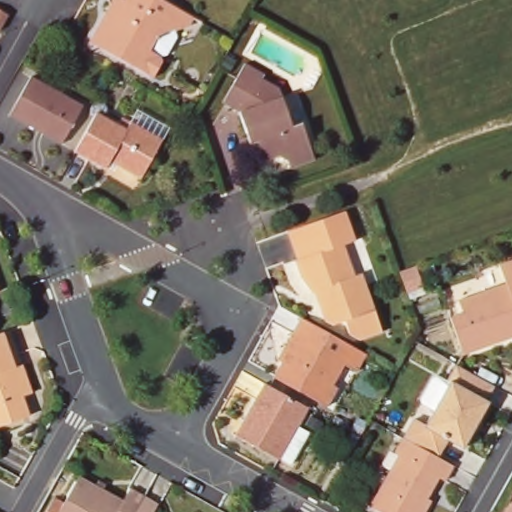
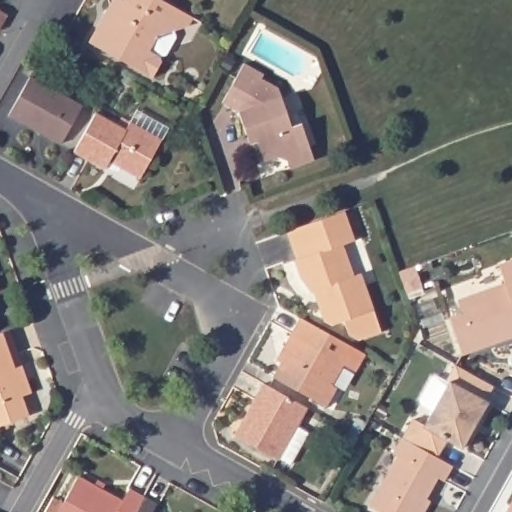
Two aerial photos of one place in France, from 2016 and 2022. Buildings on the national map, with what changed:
unchanged [(146,50),(158,56),(159,62),(149,78),(86,42),(109,0),(160,0),(180,12),(189,17),(183,26),(170,30),(155,34),(146,50)]
unchanged [(11,7),(2,24),(0,22),(0,1),(11,7)]
unchanged [(246,63),(265,74),(262,78),(280,87),(294,127),(303,123),(316,159),(291,167),(289,160),(278,156),(266,160),(256,133),(249,136),(240,112),(225,102),(246,63)]
unchanged [(27,73),(79,102),(57,139),(6,110),(27,73)]
unchanged [(98,108),(116,117),(120,110),(164,135),(142,172),(112,156),(107,164),(76,147),(98,108)]
unchanged [(303,271),(297,254),(302,252),(291,224),(337,207),(347,204),(356,234),(346,237),(357,270),(365,267),(385,325),(362,333),(352,328),(347,315),(335,318),(328,313),(320,293),(317,285),(303,271)]
unchanged [(447,317),(460,312),(455,299),(502,283),(496,265),(512,259),(512,335),(505,337),(492,342),(460,353),(447,317)]
unchanged [(347,358),(335,377),(340,380),(328,400),(278,371),(286,355),(282,352),(286,346),(305,312),(370,347),(359,365),(347,358)]
unchanged [(19,395),(25,414),(0,423),(0,331),(7,329),(15,352),(24,378),(29,391),(19,395)]
unchanged [(451,377),(448,376),(458,360),(460,361),(496,382),(487,397),(490,398),(463,443),(426,422),(451,377)]
unchanged [(267,377),(311,402),(293,435),(303,441),(293,457),(283,452),(282,453),(238,428),(267,377)]
unchanged [(355,426),(363,431),(358,441),(348,436),(355,426)]
unchanged [(425,512),(383,512),(372,506),(400,457),(397,453),(405,438),(453,465),(445,481),(439,477),(431,492),(427,497),(432,501),(425,512)]
unchanged [(60,503),(75,476),(119,500),(126,488),(140,496),(131,512),(43,512),(50,498),(60,503)]
unchanged [(154,504),(149,512),(131,512),(140,496),(154,504)]
unchanged [(512,512),(507,512),(512,502),(512,512)]

